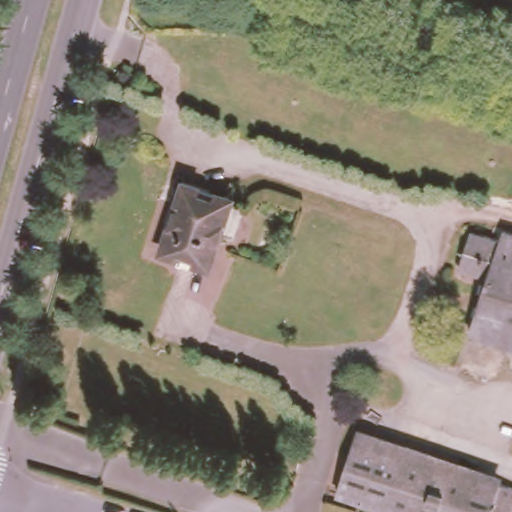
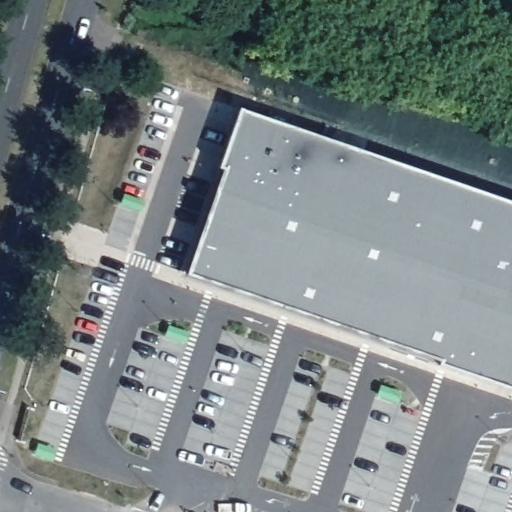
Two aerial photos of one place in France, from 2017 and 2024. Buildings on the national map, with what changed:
new [(221,170),(217,168),(237,109),(512,205),(512,391),(436,365),(438,360),(185,275),(221,170)]
demolished [(170,224),(165,224),(181,180),(232,197),(209,265),(162,250),(170,224)]
demolished [(512,228),(512,240),(507,239),(510,227),(512,228)]
demolished [(477,229),(507,239),(495,276),(463,267),(477,229)]
demolished [(502,480),(512,482),(512,508),(511,512),(389,512),(335,494),(360,423),(503,472),(502,480)]

